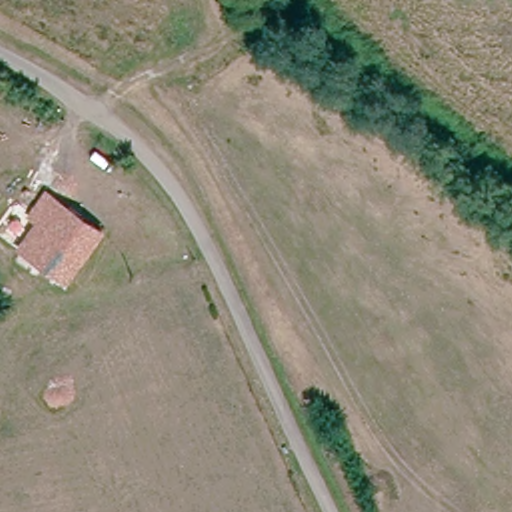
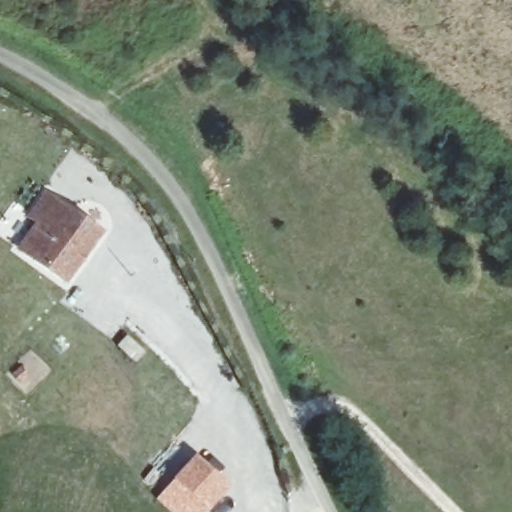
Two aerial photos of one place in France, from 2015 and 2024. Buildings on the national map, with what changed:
unchanged [(23,249),(41,223),(33,216),(50,194),(73,211),(102,234),(68,282),(23,249)]
new [(232,487),(209,512),(172,479),(196,454),(232,487)]

